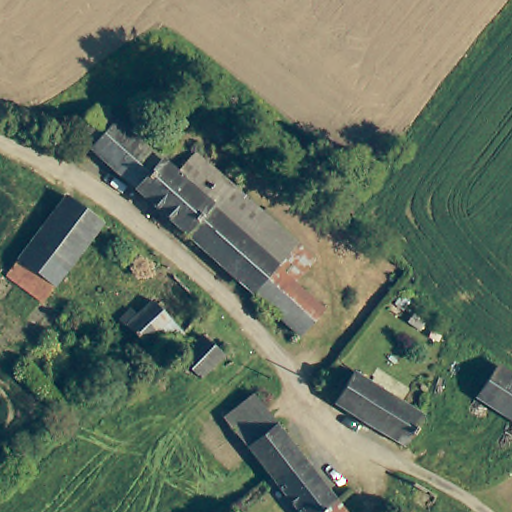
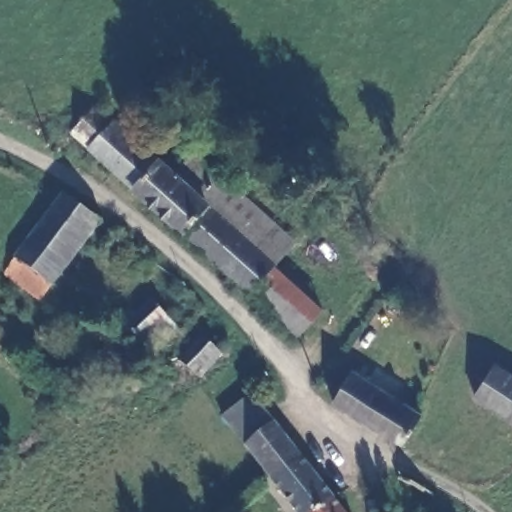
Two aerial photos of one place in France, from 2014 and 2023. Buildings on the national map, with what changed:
unchanged [(295,330),(267,305),(245,286),(149,200),(69,130),(94,101),(126,129),(173,171),(191,152),(287,239),(269,260),(287,277),(318,306),(295,330)]
unchanged [(94,225),(33,298),(0,271),(0,267),(59,197),(94,225)]
unchanged [(166,342),(139,367),(133,361),(139,355),(131,347),(140,337),(137,335),(163,312),(184,335),(171,347),(166,342)]
unchanged [(215,349),(192,372),(175,352),(193,333),(197,330),(215,349)]
unchanged [(489,363),(512,377),(512,420),(470,394),(489,363)]
unchanged [(413,412),(395,447),(329,400),(346,368),(413,412)]
unchanged [(245,448),(220,417),(249,392),(274,425),(245,448)]
unchanged [(295,512),(269,478),(245,448),(274,425),(331,496),(312,512),(295,512)]
unchanged [(343,512),(312,512),(331,496),(343,512)]

